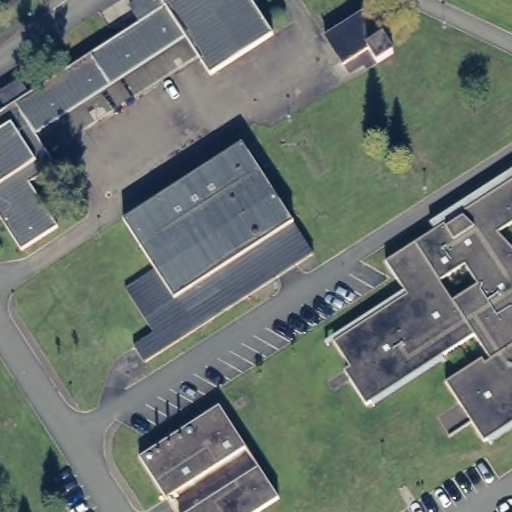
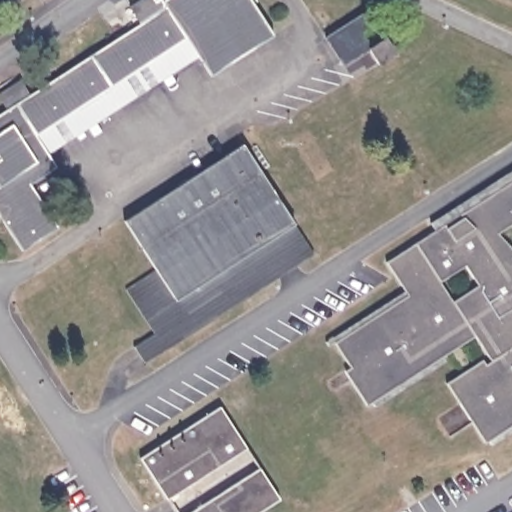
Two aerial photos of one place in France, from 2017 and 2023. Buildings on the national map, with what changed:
unchanged [(55,163),(30,179),(59,222),(22,245),(0,210),(0,110),(7,106),(0,96),(0,92),(21,78),(29,90),(139,18),(130,4),(135,0),(254,0),(274,31),(213,70),(199,51),(47,151),(55,163)]
unchanged [(363,13),(390,55),(374,65),(364,51),(338,67),(322,40),(363,13)]
unchanged [(244,141),(296,220),(316,250),(147,362),(136,346),(156,332),(127,289),(157,269),(125,220),(244,141)]
unchanged [(489,446),(486,441),(484,442),(444,382),(485,357),(472,337),(440,357),(444,362),(371,407),(367,402),(365,403),(344,371),(349,367),(330,337),(402,291),(386,262),(433,231),(427,222),(512,169),(512,221),(494,232),(512,250),(512,431),(489,446)]
unchanged [(165,502),(136,459),(219,406),(245,450),(165,502)]
unchanged [(187,512),(257,467),(279,500),(260,512),(187,512)]

